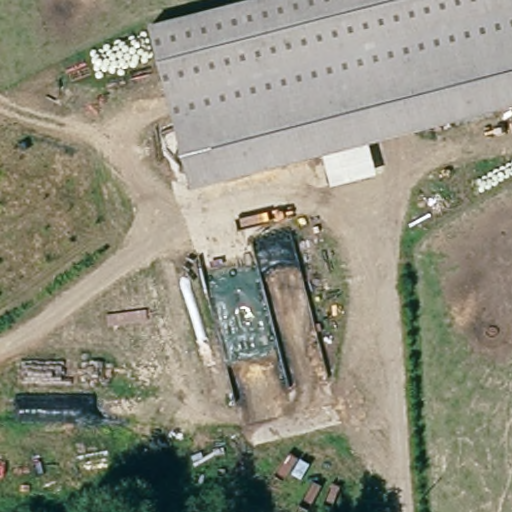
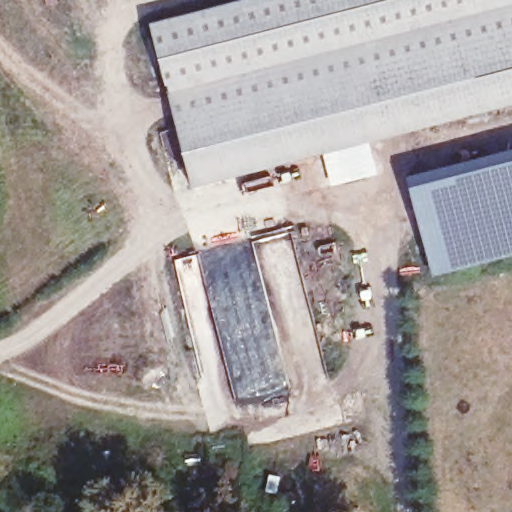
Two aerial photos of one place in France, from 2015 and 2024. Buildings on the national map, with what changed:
unchanged [(261,172),(200,189),(158,29),(244,6),(270,0),(512,0),(512,108),(321,157),(261,172)]
new [(408,185),(406,176),(489,155),(491,162),(512,157),(512,256),(431,276),(408,185)]

